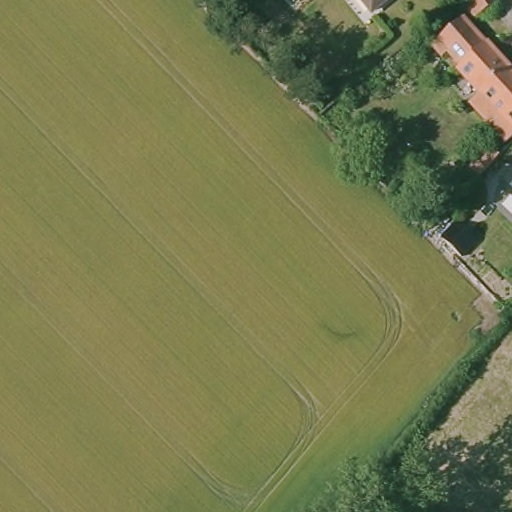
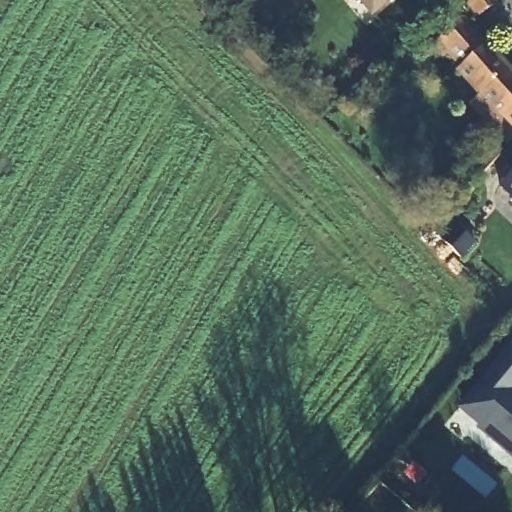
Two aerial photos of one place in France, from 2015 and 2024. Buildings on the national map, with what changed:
unchanged [(365,14),(354,0),(384,0),(365,14)]
unchanged [(473,15),(463,0),(493,0),(473,15)]
unchanged [(462,97),(473,88),(452,64),(455,60),(443,46),(437,51),(428,40),(461,13),(482,38),(483,37),(512,70),(512,138),(509,140),(462,97)]
demolished [(480,136),(490,146),(486,150),(470,167),(460,158),(480,136)]
unchanged [(512,168),(512,207),(492,189),(512,168)]
unchanged [(433,227),(448,212),(467,230),(452,246),(433,227)]
new [(512,400),(512,459),(461,407),(512,347),(512,394),(507,399),(512,400)]

